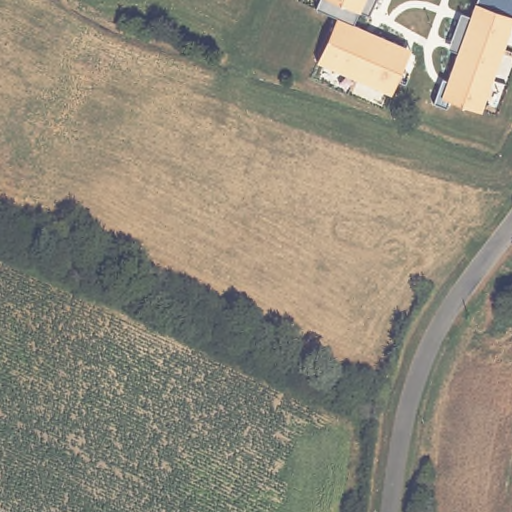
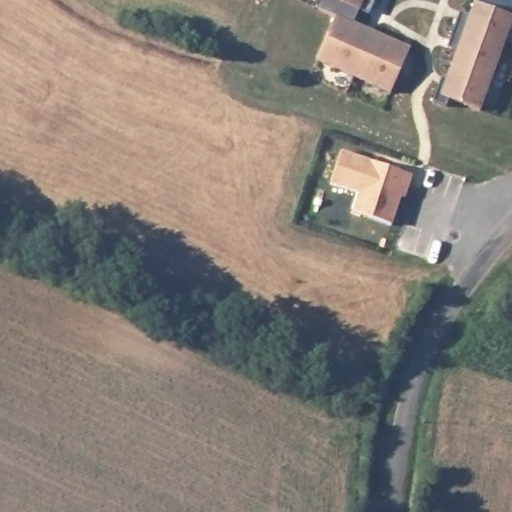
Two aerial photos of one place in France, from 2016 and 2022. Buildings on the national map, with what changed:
unchanged [(335,16),(314,7),(317,0),(374,0),(368,15),(359,12),(353,23),(409,48),(391,94),(316,61),(335,16)]
unchanged [(444,107),(433,103),(443,77),(447,79),(457,50),(448,47),(461,10),(470,13),(476,0),(512,0),(512,21),(482,112),(446,100),(444,107)]
new [(343,189),(331,185),(343,150),(415,174),(407,200),(402,198),(393,226),(352,212),(353,210),(338,205),(343,189)]

